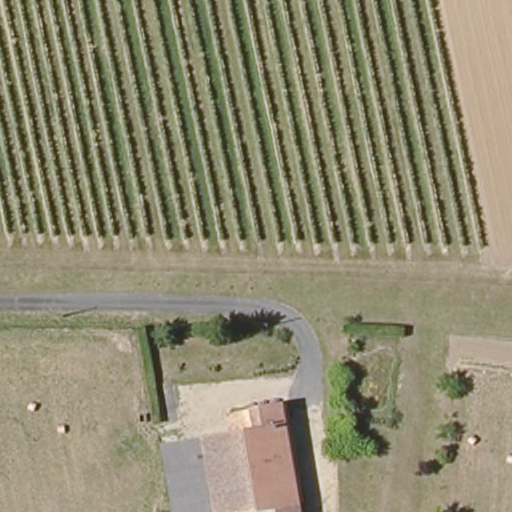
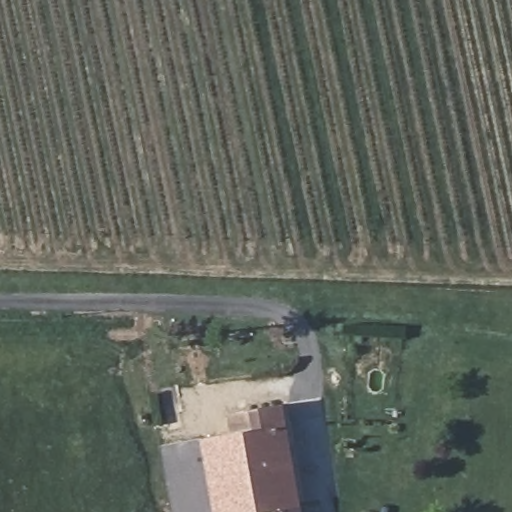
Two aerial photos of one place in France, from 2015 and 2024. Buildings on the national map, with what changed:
unchanged [(230,413),(285,404),(300,512),(175,512),(163,444),(232,431),(230,413)]

